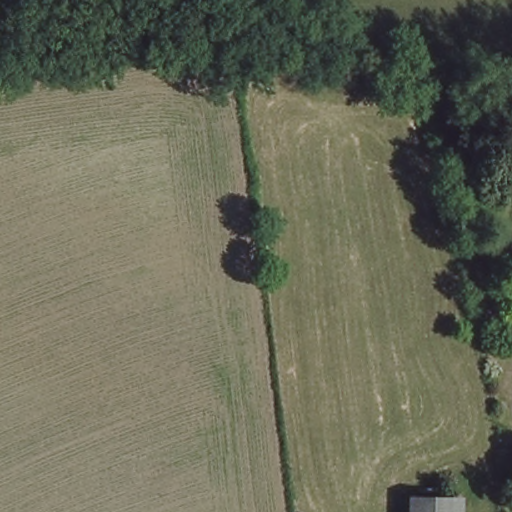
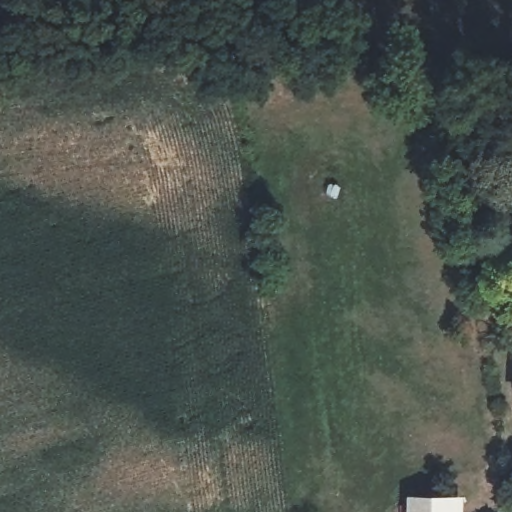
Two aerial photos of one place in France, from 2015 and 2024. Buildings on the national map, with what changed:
unchanged [(457,512),(407,512),(407,501),(457,498),(457,512)]

